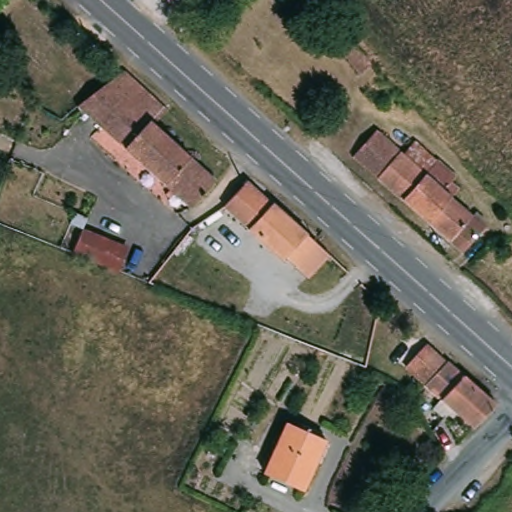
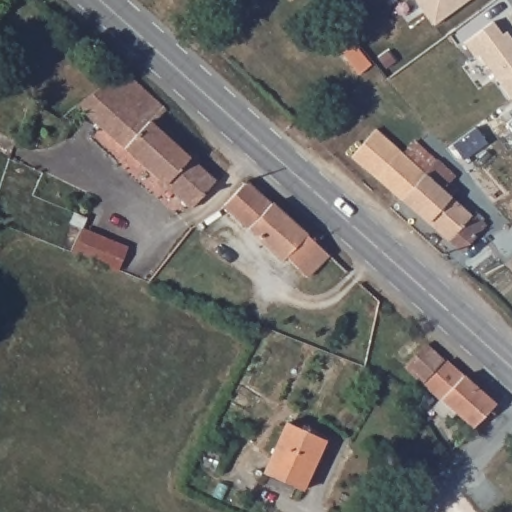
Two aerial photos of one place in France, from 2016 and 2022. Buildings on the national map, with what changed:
new [(419,0),(470,0),(437,24),(419,0)]
new [(505,32),(509,29),(512,34),(512,94),(482,53),(478,56),(466,40),(495,19),(505,32)]
unchanged [(362,90),(337,59),(348,51),(353,56),(358,54),(377,78),(362,90)]
unchanged [(140,88),(167,111),(154,126),(214,180),(189,208),(73,105),(123,72),(140,88)]
unchanged [(425,175),(438,162),(456,179),(453,183),(461,190),(451,199),(472,218),(450,242),(353,157),(374,131),(425,175)]
unchanged [(310,235),(330,253),(334,256),(313,279),(291,259),(287,263),(228,207),(252,182),(310,235)]
unchanged [(429,349),(477,392),(455,417),(407,373),(429,349)]
unchanged [(302,494),(262,479),(282,426),(320,441),(302,494)]

